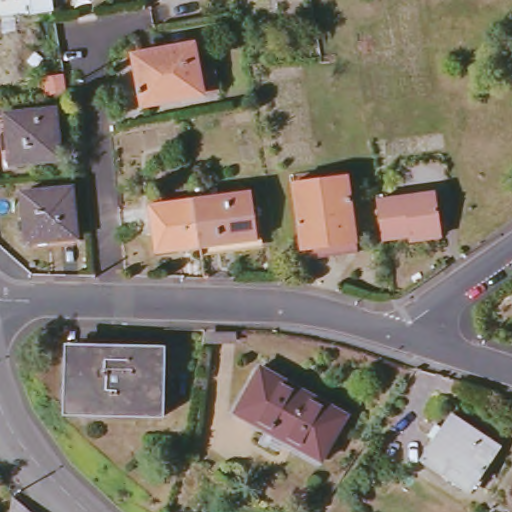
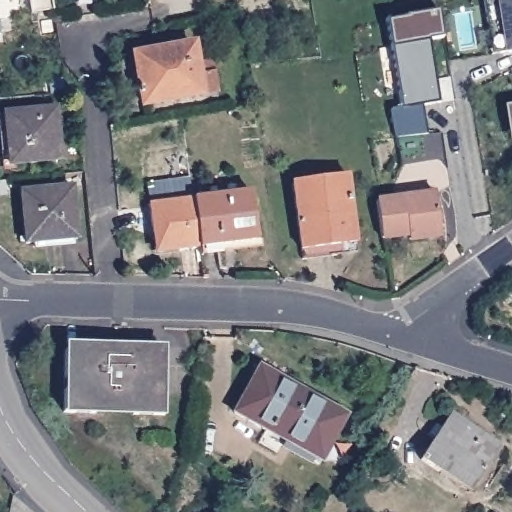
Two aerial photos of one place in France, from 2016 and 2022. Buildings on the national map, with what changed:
new [(512,0),(512,53),(504,54),(503,50),(493,53),(484,0),(512,0)]
new [(439,10),(443,38),(428,40),(439,104),(422,108),(425,134),(395,139),(391,109),(403,108),(386,21),(439,10)]
unchanged [(203,94),(144,104),(136,56),(194,44),(203,94)]
new [(512,106),(512,140),(509,140),(504,108),(512,106)]
unchanged [(63,159),(14,164),(8,114),(58,109),(63,159)]
unchanged [(360,250),(304,259),(294,182),(349,175),(360,250)]
unchanged [(78,235),(29,240),(23,193),(74,188),(78,235)]
unchanged [(251,191),(259,240),(202,249),(199,229),(196,199),(251,191)]
unchanged [(411,239),(410,234),(383,238),(378,200),(438,191),(444,234),(411,239)]
unchanged [(199,229),(202,249),(179,252),(179,248),(163,250),(161,234),(156,234),(151,205),(196,199),(199,229)]
unchanged [(100,350),(100,344),(134,346),(134,354),(166,355),(163,414),(133,413),(133,407),(94,404),(93,411),(64,409),(68,348),(100,350)]
unchanged [(340,414),(319,457),(271,430),(268,436),(238,418),(262,371),(340,414)]
unchanged [(503,446),(476,484),(445,464),(439,471),(422,459),(454,414),(503,446)]
unchanged [(12,494),(31,512),(8,512),(12,494)]

